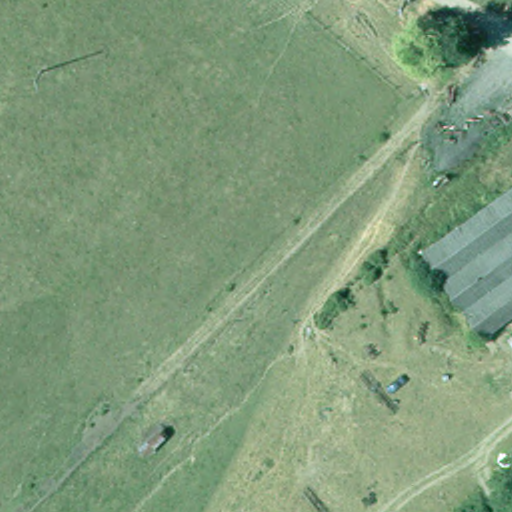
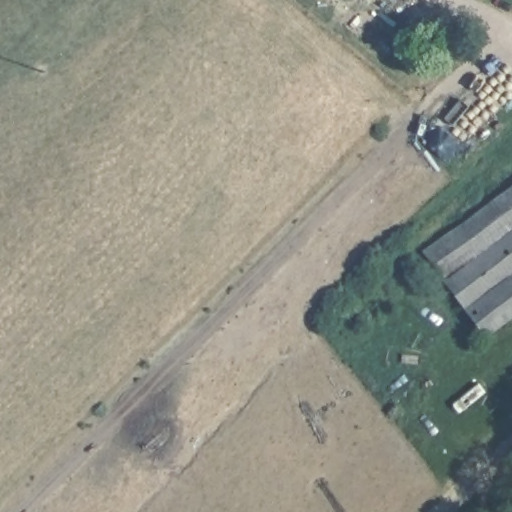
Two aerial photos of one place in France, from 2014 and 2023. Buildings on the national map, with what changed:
unchanged [(410,257),(512,178),(512,313),(479,338),(410,257)]

